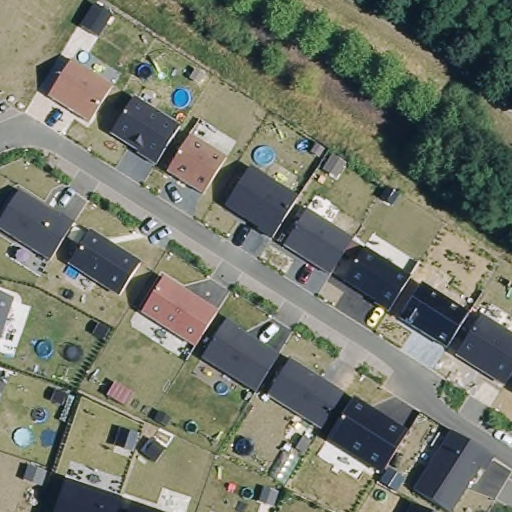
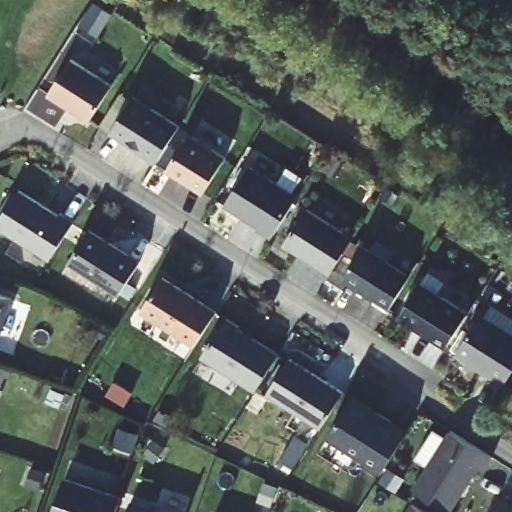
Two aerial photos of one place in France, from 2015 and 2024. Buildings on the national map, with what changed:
unchanged [(71,59),(113,83),(89,123),(48,97),(71,59)]
unchanged [(134,96),(180,125),(157,163),(110,134),(134,96)]
unchanged [(190,136),(226,157),(203,196),(166,174),(190,136)]
unchanged [(249,167),(297,195),(272,238),(225,207),(249,167)]
unchanged [(21,189),(74,221),(49,261),(0,230),(0,220),(21,189)]
unchanged [(305,210),(352,237),(330,274),(283,247),(305,210)]
unchanged [(89,230),(140,260),(118,295),(68,265),(89,230)]
unchanged [(363,248),(411,275),(389,312),(345,282),(363,248)]
unchanged [(163,277),(218,308),(194,348),(140,314),(163,277)]
unchanged [(420,284),(468,312),(445,348),(399,320),(420,284)]
unchanged [(13,298),(0,340),(0,294),(13,298)]
unchanged [(512,336),(512,374),(504,387),(457,353),(479,316),(512,336)]
unchanged [(226,320),(279,351),(255,392),(201,359),(226,320)]
unchanged [(290,359),(344,392),(322,430),(268,396),(290,359)]
unchanged [(354,398),(408,431),(381,473),(327,439),(354,398)]
unchanged [(493,457),(485,472),(480,469),(452,512),(449,512),(413,489),(448,429),(493,457)]
unchanged [(118,512),(54,512),(65,479),(122,498),(118,512)]
unchanged [(407,512),(412,502),(428,512),(407,512)]
unchanged [(131,512),(134,504),(156,512),(131,512)]

